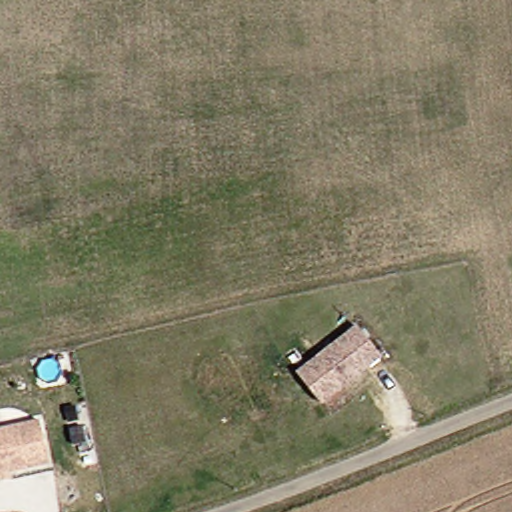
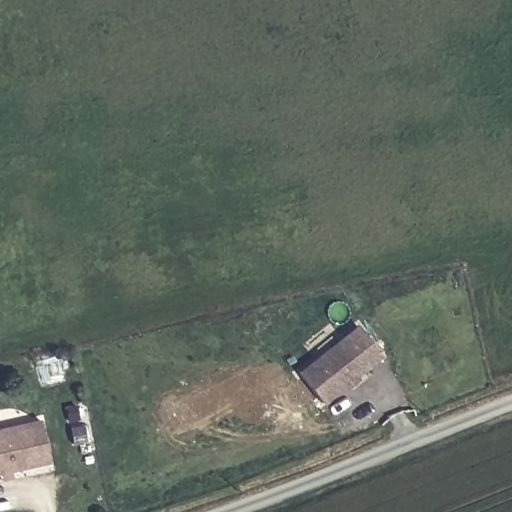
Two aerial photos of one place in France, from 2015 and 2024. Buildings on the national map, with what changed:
unchanged [(357,322),(381,352),(321,398),(297,370),(357,322)]
unchanged [(0,425),(36,417),(44,461),(5,469),(6,476),(0,477),(0,425)]

